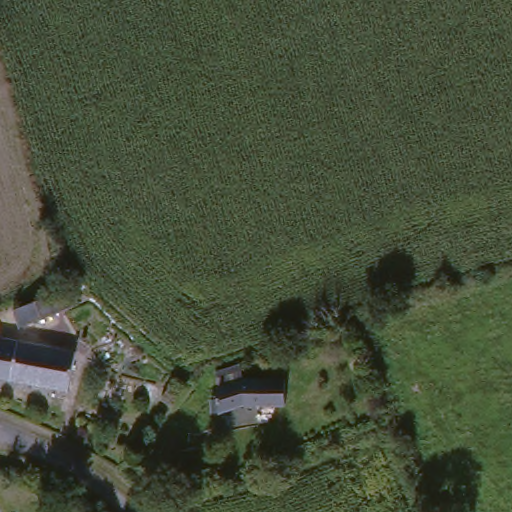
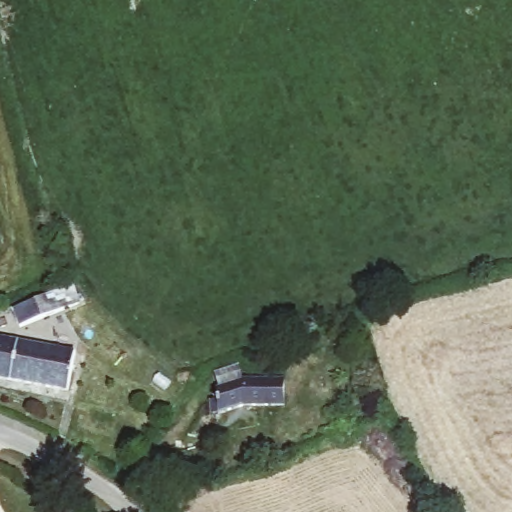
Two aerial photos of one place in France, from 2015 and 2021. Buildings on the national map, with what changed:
unchanged [(79,312),(14,332),(7,311),(73,293),(79,312)]
unchanged [(0,381),(0,343),(76,360),(73,398),(0,381)]
unchanged [(279,383),(278,411),(246,406),(220,407),(219,386),(219,374),(246,369),(248,381),(260,379),(279,383)]

